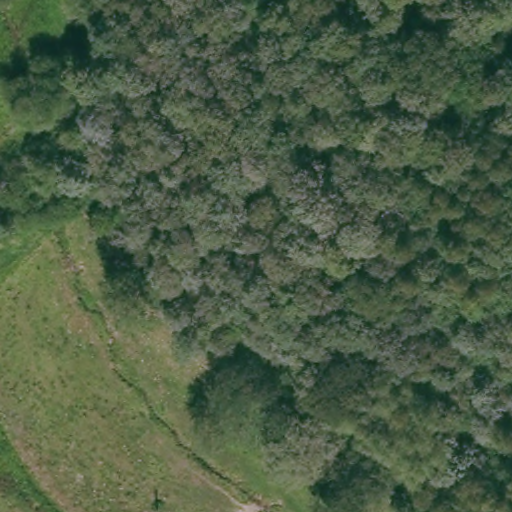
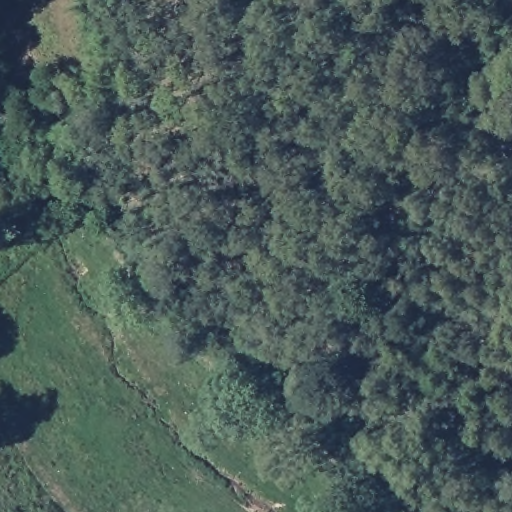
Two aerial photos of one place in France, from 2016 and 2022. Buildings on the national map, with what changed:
[]

